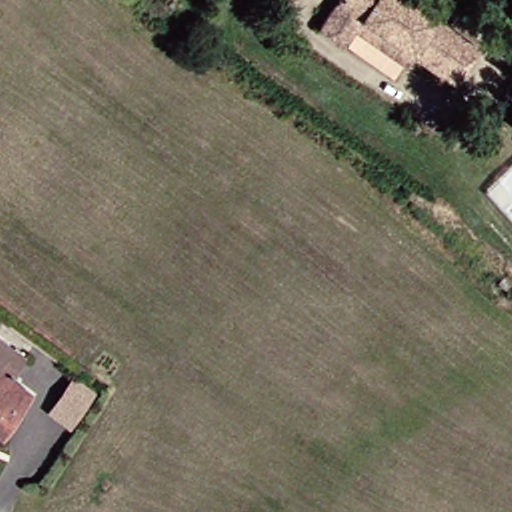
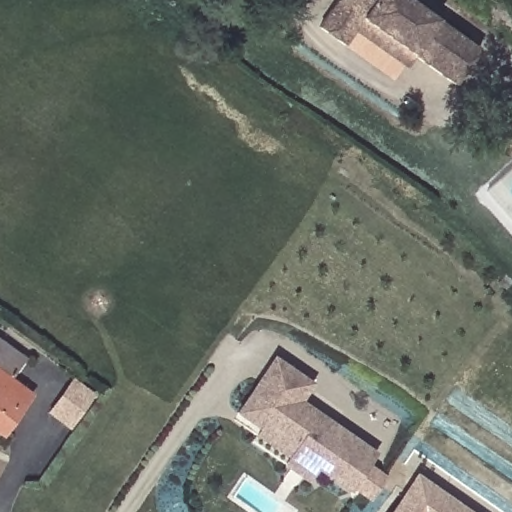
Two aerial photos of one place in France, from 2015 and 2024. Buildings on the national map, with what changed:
unchanged [(308,26),(326,0),(406,0),(468,43),(436,89),(397,62),(347,27),(335,45),(308,26)]
unchanged [(0,375),(0,346),(14,355),(0,375)]
new [(317,470),(307,482),(282,465),(287,456),(255,435),(257,429),(234,413),(274,355),(315,383),(304,400),(378,453),(350,493),(317,470)]
unchanged [(0,420),(0,375),(21,390),(0,420)]
unchanged [(74,426),(70,423),(55,411),(78,381),(89,390),(97,397),(74,426)]
new [(419,477),(475,512),(396,512),(419,477)]

